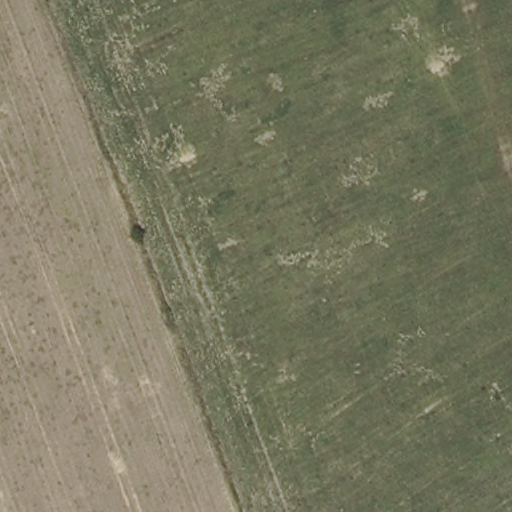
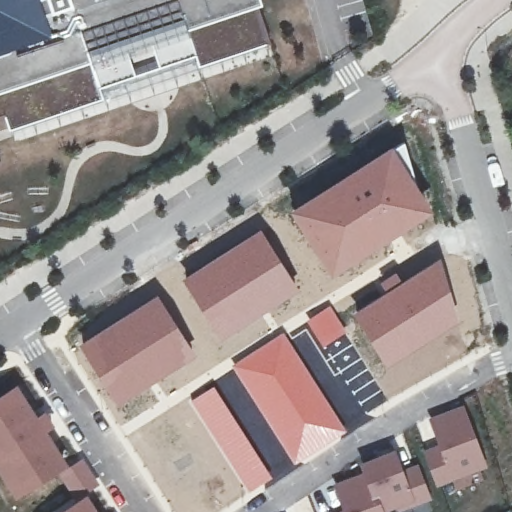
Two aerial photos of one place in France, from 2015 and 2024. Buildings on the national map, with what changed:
new [(251,6),(267,41),(198,64),(195,54),(97,86),(101,97),(7,128),(3,112),(0,113),(0,0),(259,0),(260,3),(251,6)]
new [(364,160),(404,140),(415,176),(432,210),(380,240),(329,273),(289,210),(364,160)]
new [(260,227),(296,285),(221,341),(181,278),(260,227)]
new [(384,291),(378,281),(395,270),(401,280),(437,257),(460,320),(423,344),(384,364),(353,312),(384,291)]
new [(157,292),(197,355),(151,387),(120,406),(77,345),(157,292)]
new [(330,304),(347,332),(321,350),(313,339),(306,328),(308,326),(305,321),(330,304)]
new [(285,330),(290,337),(306,328),(313,339),(297,350),(348,431),(294,466),(231,366),(285,330)]
new [(75,502),(56,474),(15,498),(0,474),(0,394),(15,383),(37,415),(45,411),(55,426),(46,430),(68,465),(82,457),(102,485),(85,493),(97,512),(60,512),(75,502)]
new [(214,383),(274,477),(247,493),(188,400),(214,383)]
new [(438,443),(428,418),(461,405),(488,466),(436,486),(424,450),(438,443)]
new [(341,510),(332,485),(363,472),(359,462),(395,450),(402,467),(417,462),(432,498),(397,512),(394,508),(385,512),(337,512),(341,510)]

